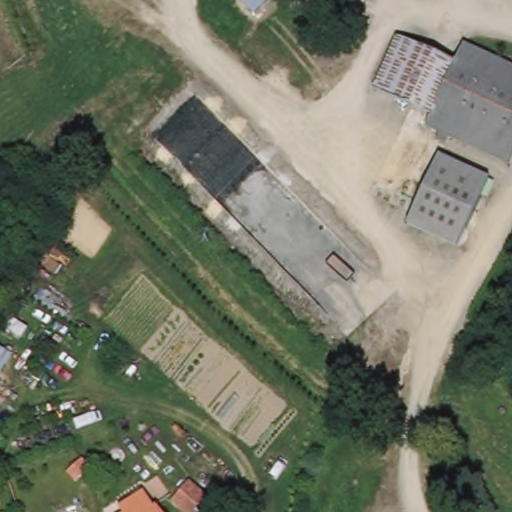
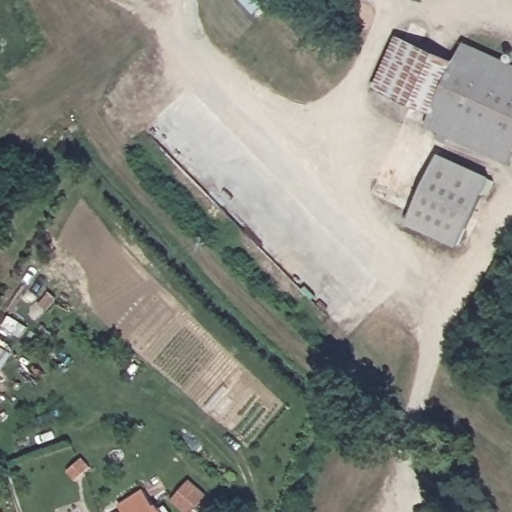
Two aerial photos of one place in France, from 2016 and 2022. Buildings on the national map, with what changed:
unchanged [(433,120),(377,95),(398,42),(454,67),(433,120)]
unchanged [(452,137),(448,146),(440,142),(443,135),(429,127),(433,120),(454,67),(464,45),(512,65),(512,158),(510,162),(452,137)]
unchanged [(488,178),(458,248),(407,227),(439,156),(488,178)]
unchanged [(76,468),(80,465),(90,454),(96,462),(99,465),(83,479),(76,468)]
unchanged [(222,502),(213,512),(186,512),(172,499),(191,477),(222,502)]
unchanged [(129,508),(152,493),(157,497),(163,507),(165,505),(170,512),(131,512),(129,508)]

